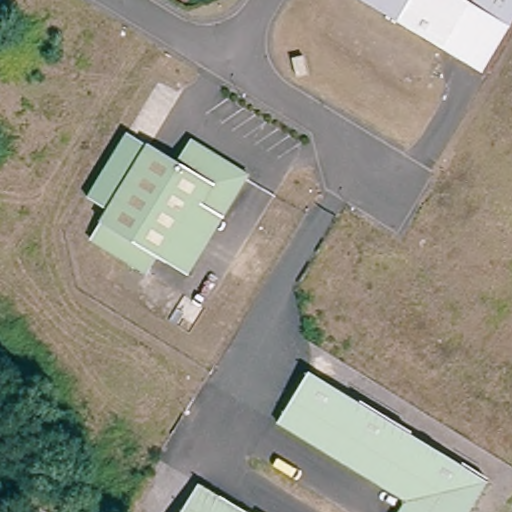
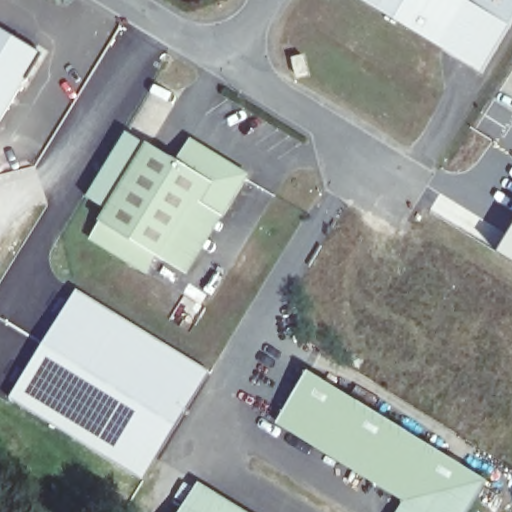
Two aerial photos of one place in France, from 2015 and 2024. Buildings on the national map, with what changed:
unchanged [(480,70),(365,0),(512,0),(512,18),(480,70)]
new [(0,115),(0,28),(39,52),(0,115)]
unchanged [(301,55),(305,72),(294,75),(290,57),(301,55)]
unchanged [(129,166),(106,204),(85,192),(125,127),(146,139),(129,166)]
unchanged [(123,254),(88,233),(106,204),(129,166),(146,139),(146,138),(176,156),(187,140),(189,135),(223,155),(246,169),(220,211),(199,198),(163,256),(155,251),(145,267),(123,254)]
unchanged [(220,211),(185,269),(163,256),(199,198),(220,211)]
new [(512,230),(512,262),(499,254),(509,235),(512,230)]
new [(76,288),(210,371),(142,481),(8,398),(76,288)]
unchanged [(462,512),(392,512),(401,497),(273,420),(304,368),(483,477),(462,512)]
unchanged [(247,512),(175,512),(194,480),(247,512)]

